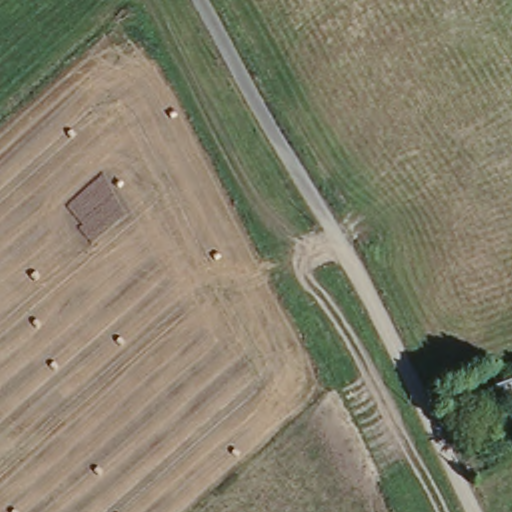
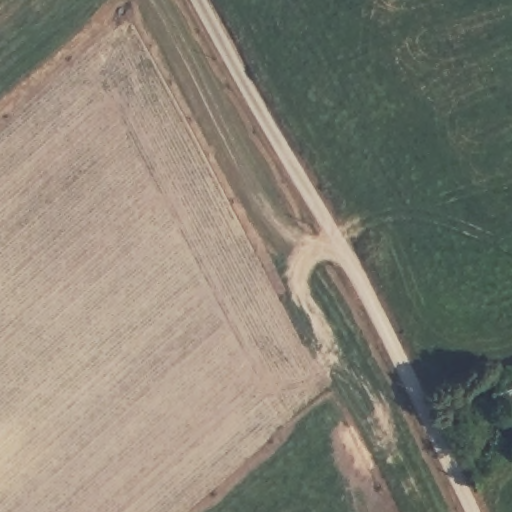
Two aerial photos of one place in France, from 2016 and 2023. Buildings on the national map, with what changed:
unchanged [(512,410),(506,412),(494,383),(512,375),(512,410)]

